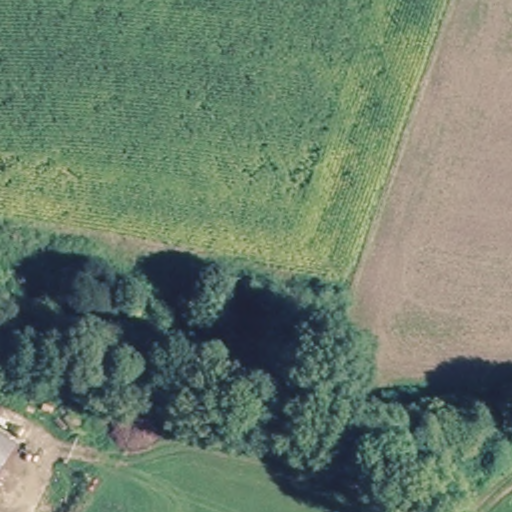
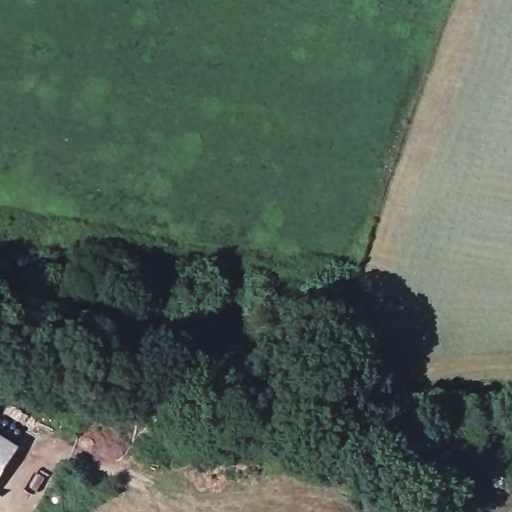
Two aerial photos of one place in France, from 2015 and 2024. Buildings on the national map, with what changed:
unchanged [(0,482),(0,446),(16,456),(0,482)]

